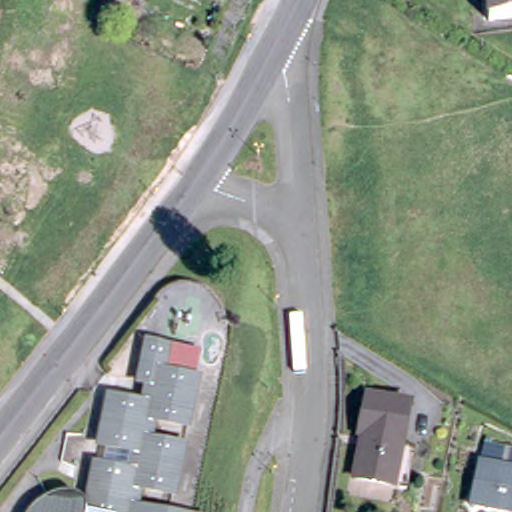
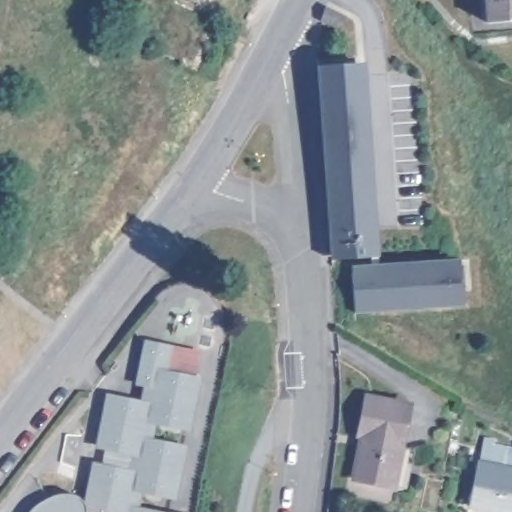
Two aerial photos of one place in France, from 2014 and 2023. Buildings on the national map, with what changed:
unchanged [(144,2),(140,0),(144,0),(144,2)]
unchanged [(485,17),(483,0),(512,0),(512,15),(485,17)]
new [(332,257),(319,65),(366,62),(381,254),(332,257)]
new [(463,305),(357,312),(354,265),(460,257),(463,305)]
unchanged [(99,462),(134,468),(139,445),(103,438),(113,392),(148,399),(152,376),(146,374),(154,338),(172,341),(167,368),(202,375),(192,421),(158,414),(152,438),(187,445),(177,491),(144,483),(139,507),(165,512),(91,512),(89,512),(91,502),(99,462)]
unchanged [(360,431),(357,430),(364,391),(407,400),(391,480),(352,472),(360,431)]
unchanged [(480,461),(512,468),(512,511),(470,502),(480,461)]
unchanged [(31,512),(37,506),(51,495),(60,492),(69,491),(73,491),(80,492),(91,502),(89,512),(91,512),(31,512)]

